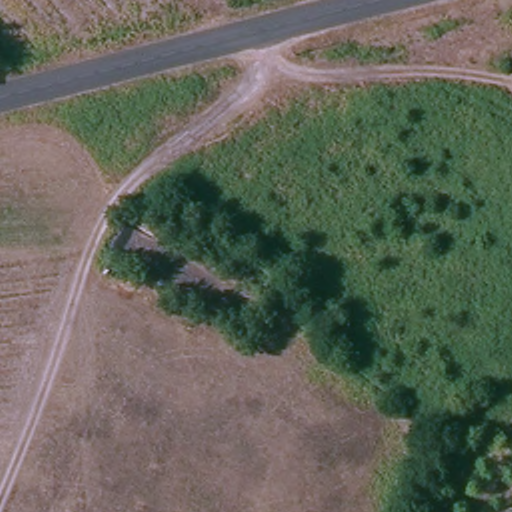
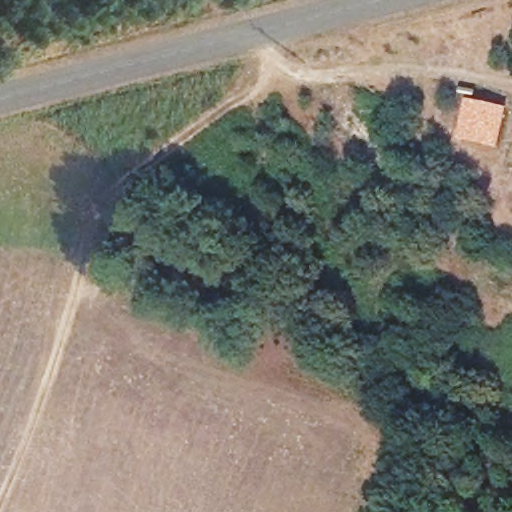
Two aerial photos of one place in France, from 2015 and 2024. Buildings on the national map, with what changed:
new [(469,100),(509,108),(499,150),(459,140),(469,100)]

